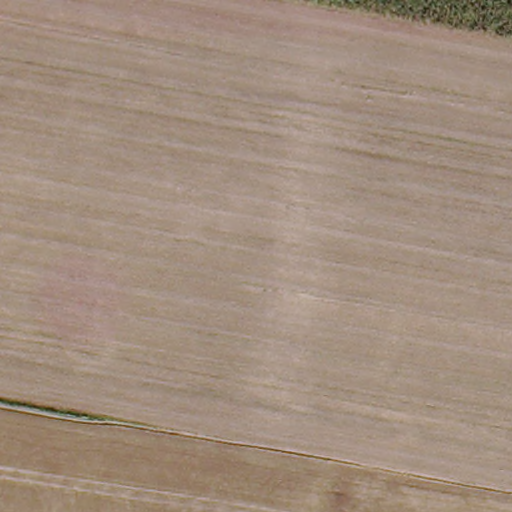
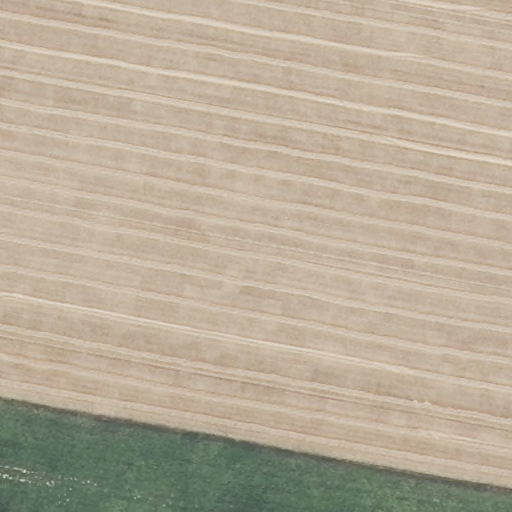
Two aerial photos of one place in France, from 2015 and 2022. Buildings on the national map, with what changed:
[]

